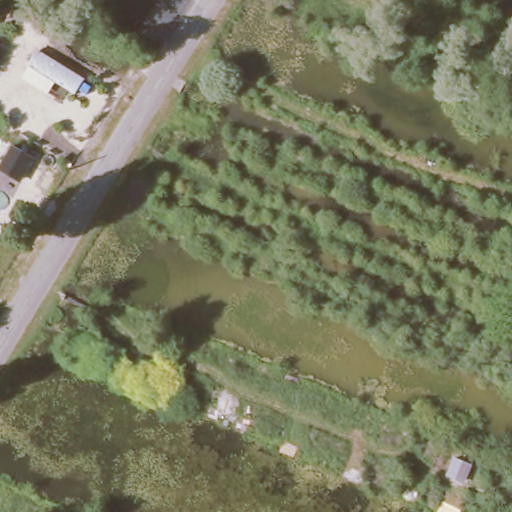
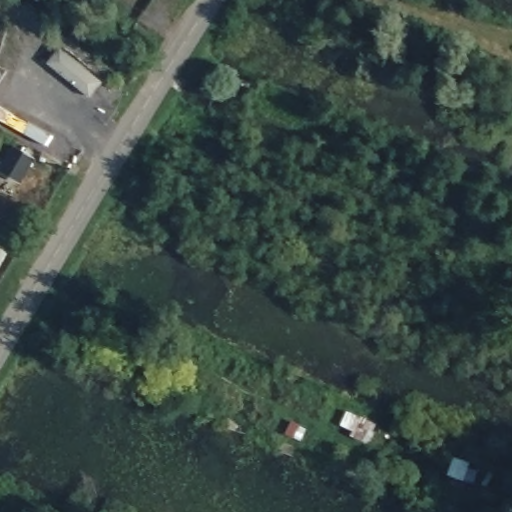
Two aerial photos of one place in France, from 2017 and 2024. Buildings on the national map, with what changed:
unchanged [(13,144),(34,156),(22,177),(1,165),(13,144)]

